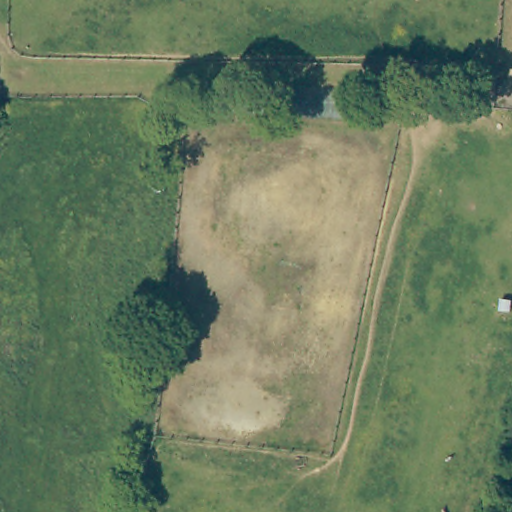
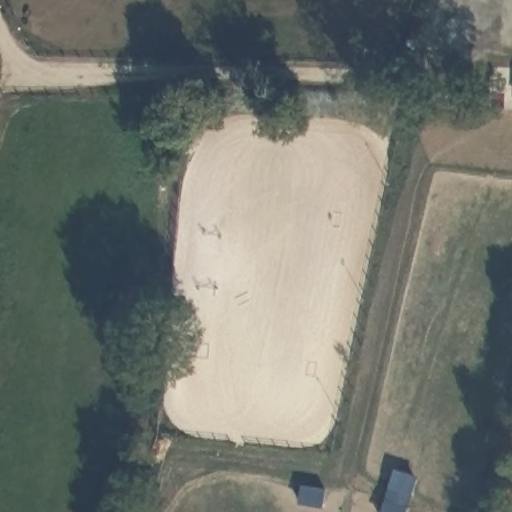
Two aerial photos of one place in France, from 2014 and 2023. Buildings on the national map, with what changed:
[]

